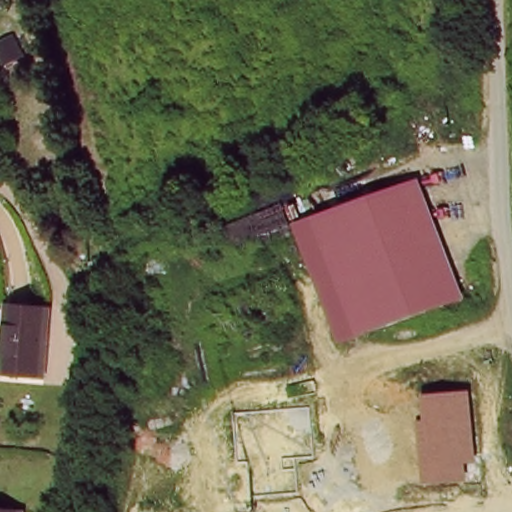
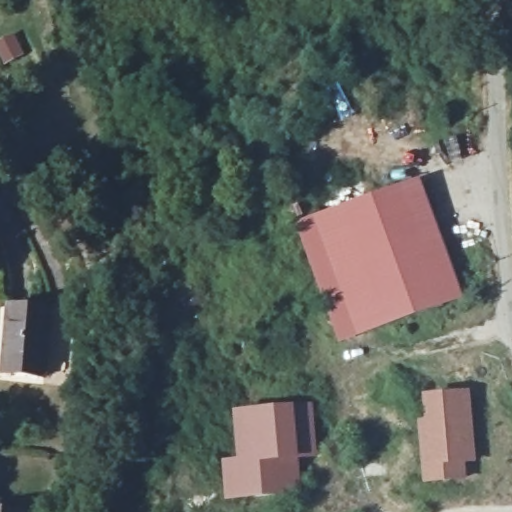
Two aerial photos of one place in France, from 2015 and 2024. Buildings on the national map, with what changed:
unchanged [(467,299),(344,345),(302,225),(423,180),(467,299)]
unchanged [(18,316),(20,293),(56,297),(54,320),(47,385),(8,382),(16,316),(18,316)]
unchanged [(471,391),(477,461),(467,463),(469,481),(423,484),(418,421),(425,421),(425,395),(471,391)]
new [(237,460),(232,413),(312,405),(318,459),(297,461),(302,496),(224,501),(220,462),(237,460)]
unchanged [(25,512),(0,512),(0,505),(26,508),(25,512)]

